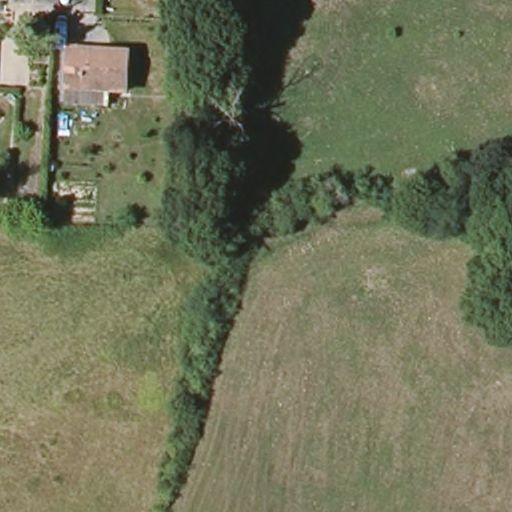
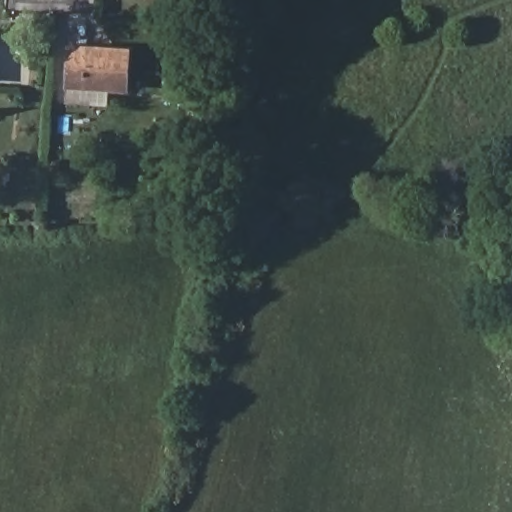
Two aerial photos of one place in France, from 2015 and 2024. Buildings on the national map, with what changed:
unchanged [(194,6),(166,6),(167,0),(199,0),(199,6),(194,6)]
unchanged [(70,91),(70,53),(129,57),(128,95),(70,91)]

